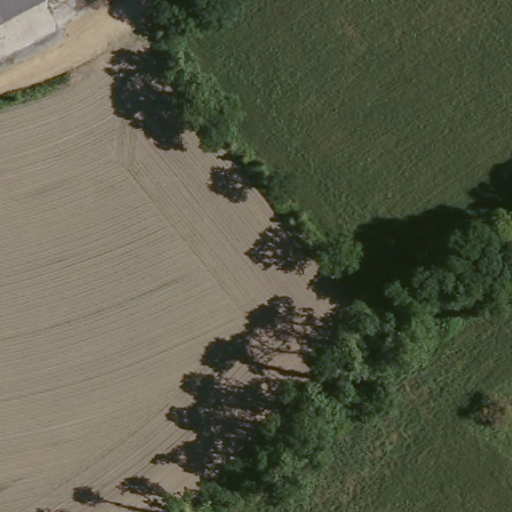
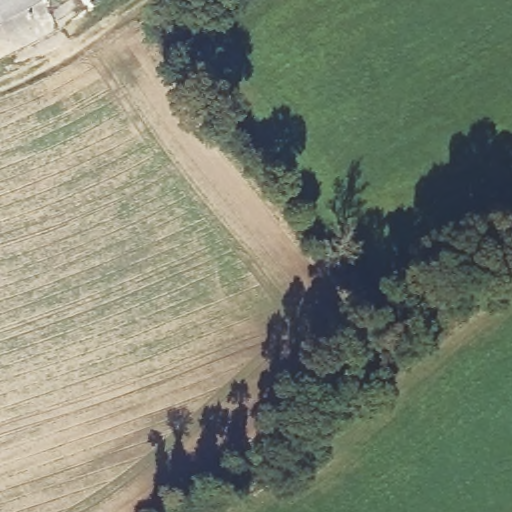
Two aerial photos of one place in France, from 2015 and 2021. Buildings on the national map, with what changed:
unchanged [(0,24),(0,0),(48,0),(0,24)]

